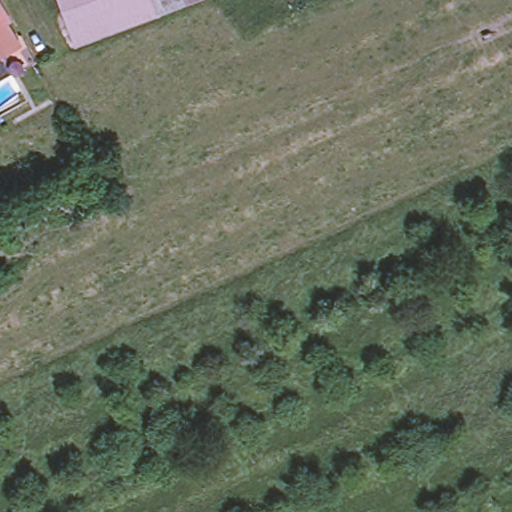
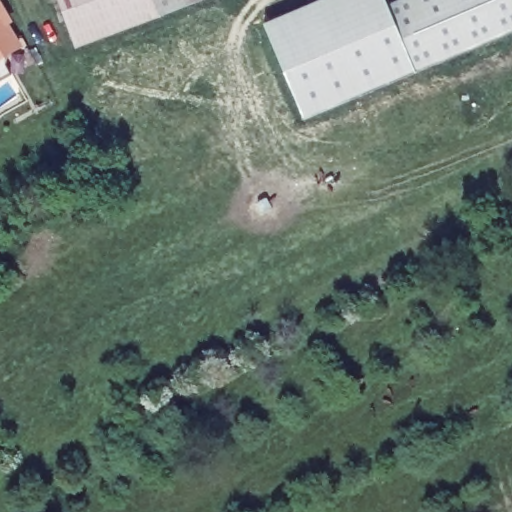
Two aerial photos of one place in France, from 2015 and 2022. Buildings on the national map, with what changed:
unchanged [(57,0),(201,0),(73,45),(57,0)]
new [(264,24),(319,0),(385,0),(387,5),(399,0),(512,0),(512,30),(303,119),(264,24)]
unchanged [(13,75),(2,81),(0,78),(0,5),(10,21),(6,24),(18,43),(20,45),(20,46),(19,47),(8,59),(8,65),(13,75)]

